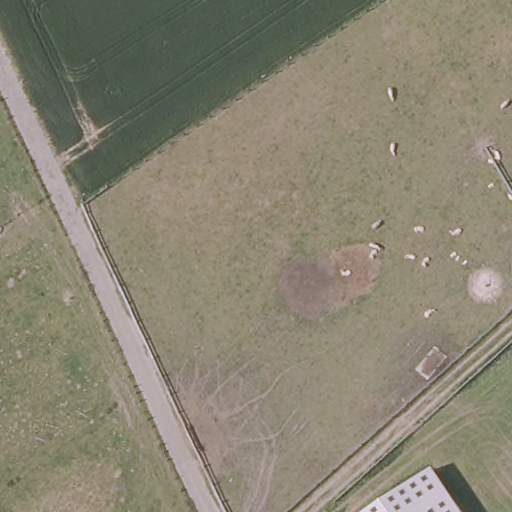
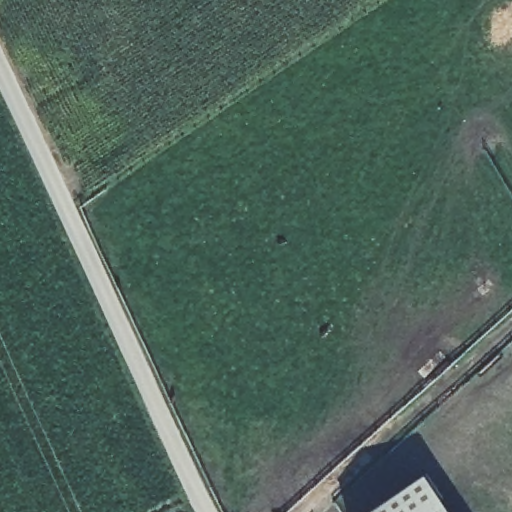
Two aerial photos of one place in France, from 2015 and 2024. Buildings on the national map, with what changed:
unchanged [(367,512),(427,473),(453,512),(367,512)]

